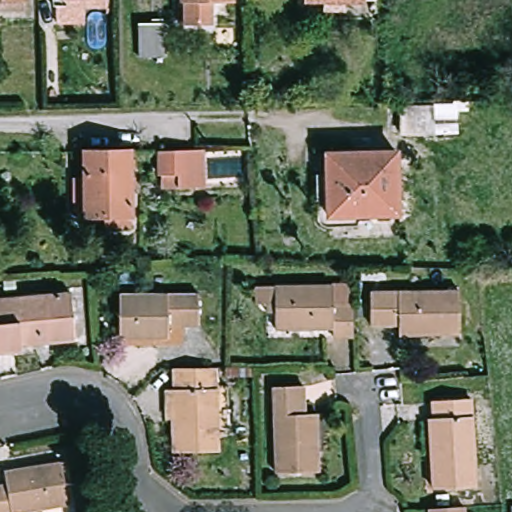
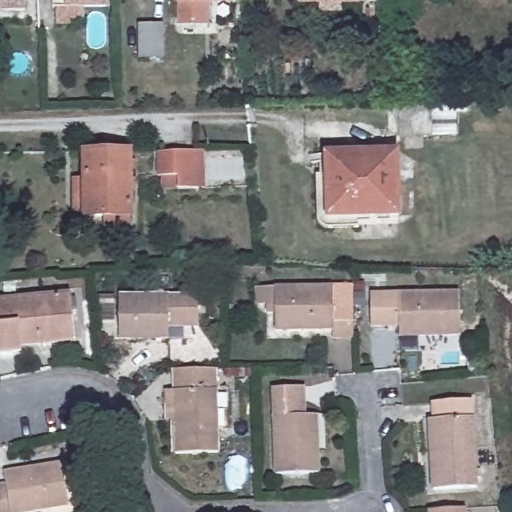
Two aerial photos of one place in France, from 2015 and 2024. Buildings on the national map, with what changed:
unchanged [(28,7),(3,7),(3,0),(28,0),(28,7)]
unchanged [(105,1),(59,2),(59,0),(105,0),(105,1)]
unchanged [(185,0),(212,0),(212,20),(212,24),(185,25),(185,20),(185,0)]
unchanged [(363,1),(306,2),(306,0),(375,0),(376,1),(363,1)]
unchanged [(165,25),(166,56),(143,57),(141,26),(165,25)]
unchanged [(436,105),(457,104),(458,134),(435,135),(400,136),(399,106),(436,105)]
unchanged [(335,220),(328,219),(325,216),(325,211),(325,207),(324,167),(336,167),(336,147),(406,146),(407,208),(366,209),(366,220),(335,220)]
unchanged [(199,184),(163,185),(162,148),(208,147),(209,157),(210,184),(199,184)]
unchanged [(111,226),(111,222),(101,223),(101,216),(88,216),(88,187),(77,187),(76,173),(88,173),(88,148),(133,148),(135,226),(111,226)]
unchanged [(354,299),(355,331),(335,331),(335,322),(277,322),(277,307),(268,307),(268,298),(258,298),(258,281),(278,281),(354,282),(354,299)]
unchanged [(376,324),(376,291),(464,292),(464,334),(404,334),(404,324),(394,324),(376,324)]
unchanged [(80,340),(26,344),(27,351),(0,353),(0,300),(76,293),(80,340)]
unchanged [(174,336),(124,336),(125,293),(204,293),(203,323),(188,322),(174,322),(174,336)]
unchanged [(218,370),(223,453),(179,456),(178,423),(170,423),(168,393),(176,393),(175,370),(218,370)]
unchanged [(309,400),(309,413),(321,413),(324,469),(281,471),(278,387),(308,385),(309,400)]
unchanged [(432,489),(431,453),(430,421),(434,420),(433,403),(470,402),(474,488),(432,489)]
unchanged [(65,460),(73,505),(32,512),(0,512),(0,486),(12,484),(10,470),(65,460)]
unchanged [(474,509),(474,512),(438,512),(461,510),(474,509)]

